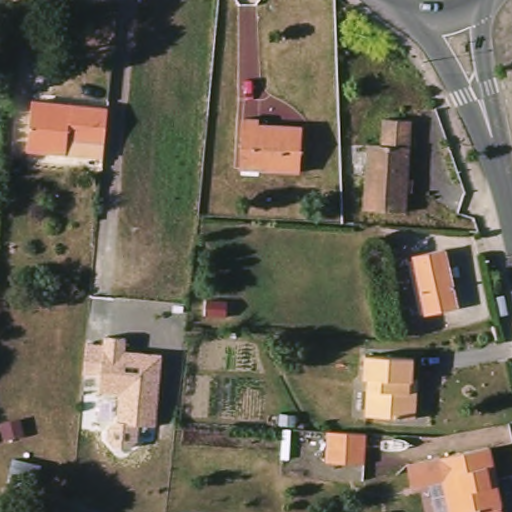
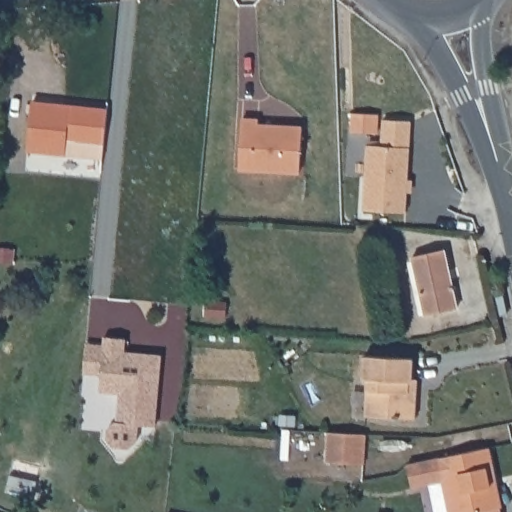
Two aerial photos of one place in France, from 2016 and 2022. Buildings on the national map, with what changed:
unchanged [(113,110),(108,158),(32,151),(37,102),(113,109),(113,110)]
unchanged [(372,140),(386,141),(388,115),(416,116),(411,207),(368,205),(372,140)]
unchanged [(263,120),(263,125),(307,128),(305,172),(244,169),(247,119),(263,120)]
unchanged [(462,308),(431,315),(418,257),(449,250),(462,308)]
unchanged [(205,301),(227,302),(225,318),(204,316),(205,301)]
unchanged [(115,421),(118,391),(99,390),(103,338),(125,339),(123,352),(161,355),(156,426),(115,421)]
unchanged [(417,381),(423,381),(420,419),(371,416),(373,379),(368,379),(370,356),(418,359),(417,381)]
unchanged [(24,438),(5,443),(0,426),(20,421),(24,438)]
unchanged [(370,434),(369,464),(331,462),(333,432),(370,434)]
unchanged [(484,512),(456,512),(449,480),(417,486),(412,465),(493,448),(499,478),(505,508),(500,509),(484,512)]
unchanged [(6,485),(7,485),(13,460),(40,467),(36,482),(42,483),(39,494),(36,493),(34,501),(4,492),(6,485)]

